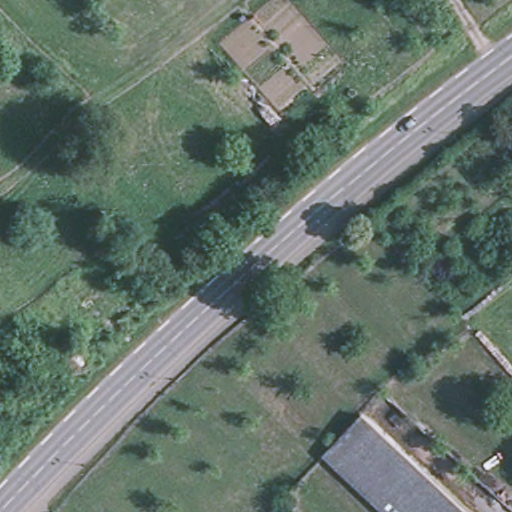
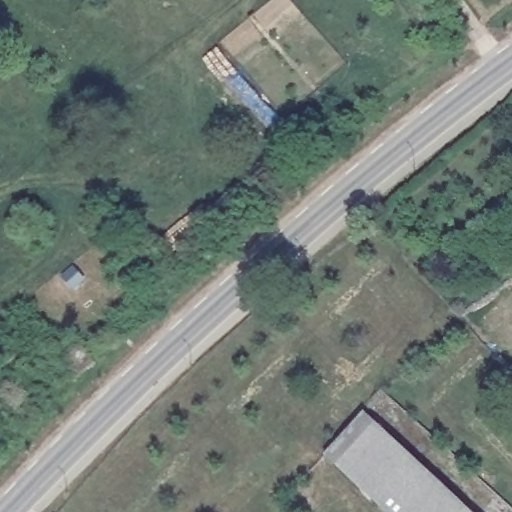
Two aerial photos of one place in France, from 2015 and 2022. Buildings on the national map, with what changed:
unchanged [(475,512),(381,512),(321,459),(367,411),(475,512)]

